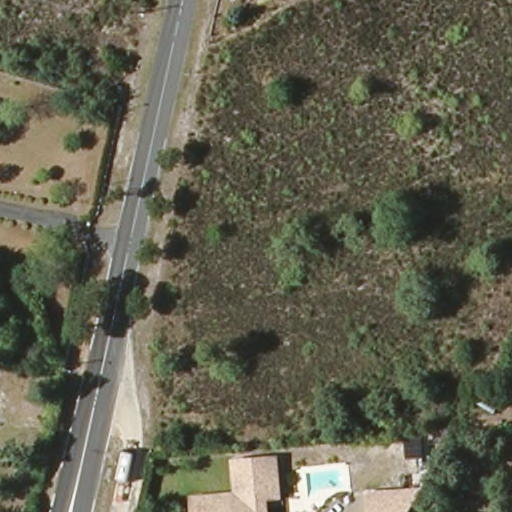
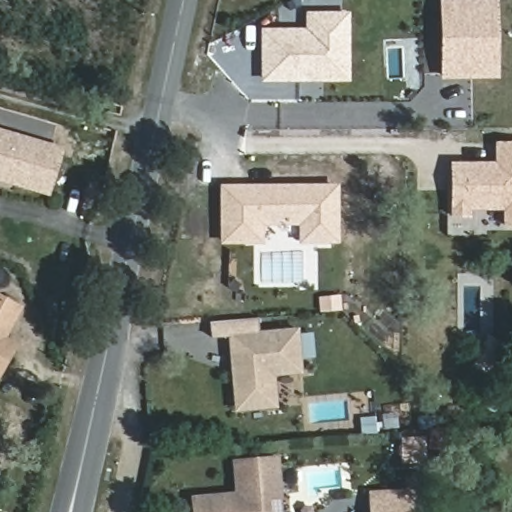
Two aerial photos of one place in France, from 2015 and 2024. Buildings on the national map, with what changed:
new [(440,0),(498,0),(500,79),(441,80),(440,0)]
new [(305,12),(349,12),(352,16),(347,79),(343,82),(260,82),(260,27),(304,27),(305,12)]
new [(63,152),(54,188),(8,175),(6,182),(0,180),(0,134),(63,152)]
new [(512,228),(504,228),(503,210),(472,210),(472,218),(451,218),(451,162),(495,161),(494,142),(512,141),(512,228)]
new [(339,244),(299,245),(298,225),(265,225),(265,244),(221,245),(219,185),(339,184),(339,244)]
new [(23,307),(11,327),(8,327),(5,333),(7,335),(6,337),(18,343),(1,374),(0,374),(0,294),(23,307)]
new [(236,411),(228,334),(299,327),(303,372),(274,376),(278,407),(236,411)]
unchanged [(267,512),(212,512),(211,495),(236,492),(233,462),(275,458),(278,497),(266,498),(267,512)]
unchanged [(379,512),(380,491),(431,490),(417,512),(379,512)]
unchanged [(209,493),(212,512),(191,512),(188,495),(209,493)]

